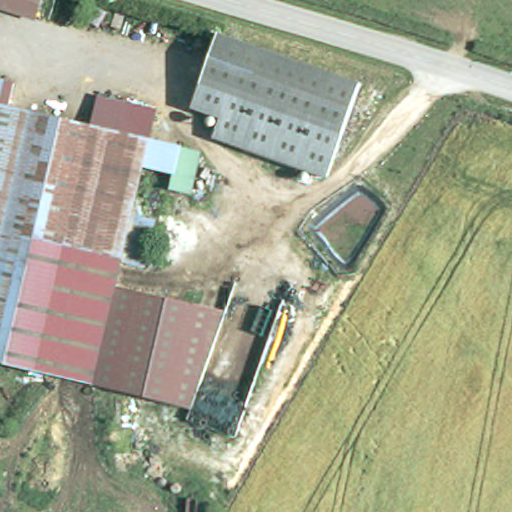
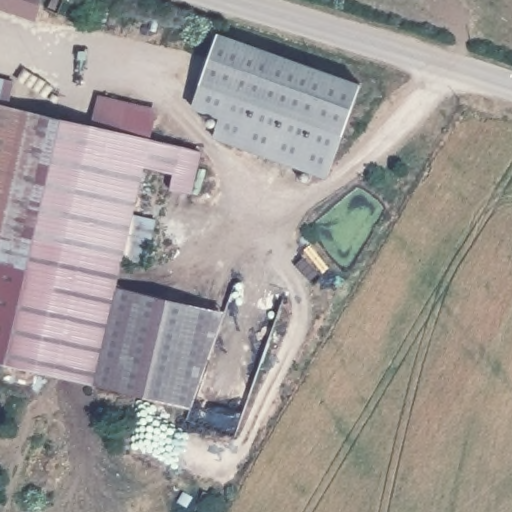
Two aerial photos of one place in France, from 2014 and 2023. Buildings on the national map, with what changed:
unchanged [(0,5),(0,0),(40,0),(37,15),(0,5)]
unchanged [(227,119),(199,109),(225,39),(364,88),(332,178),(220,138),(227,119)]
unchanged [(121,293),(100,382),(0,360),(0,277),(5,257),(0,256),(0,74),(8,75),(3,101),(96,123),(102,94),(162,105),(155,136),(209,149),(200,191),(177,186),(181,168),(150,160),(138,212),(163,218),(153,265),(128,259),(122,287),(121,293)]
unchanged [(223,310),(194,406),(100,382),(121,293),(223,310)]

